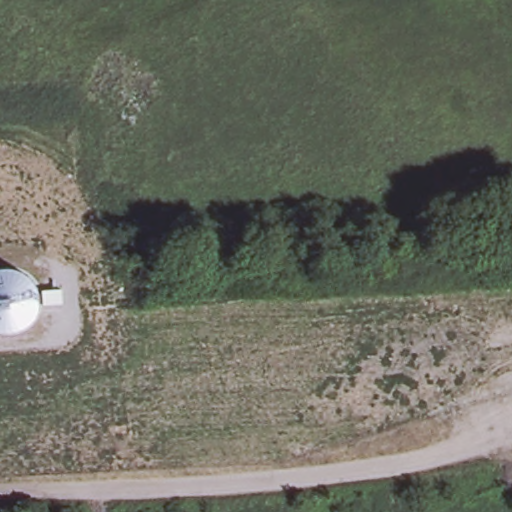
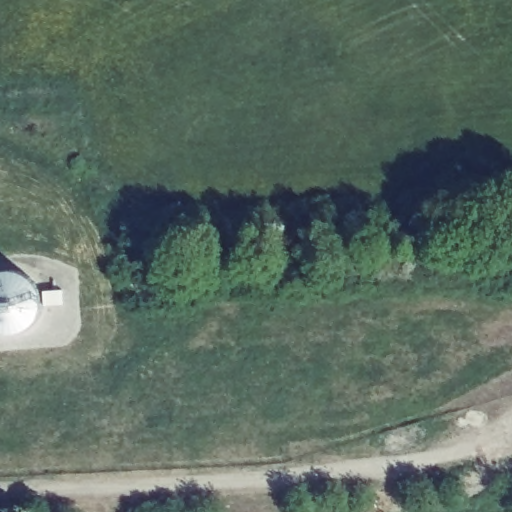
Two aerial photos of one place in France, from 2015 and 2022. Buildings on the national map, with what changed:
unchanged [(0,269),(12,268),(26,272),(38,282),(41,293),(42,305),(38,317),(29,326),(20,332),(10,332),(0,331),(0,270),(0,269)]

